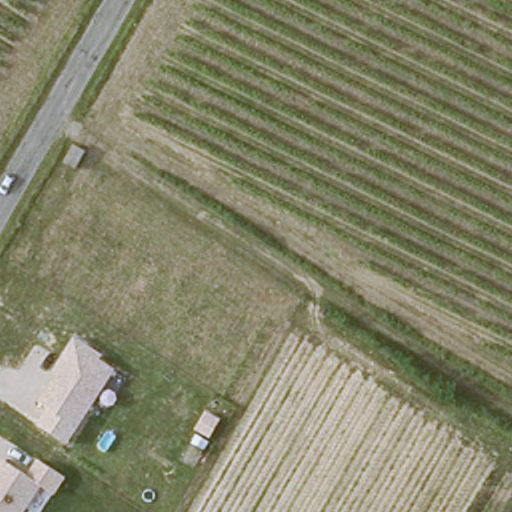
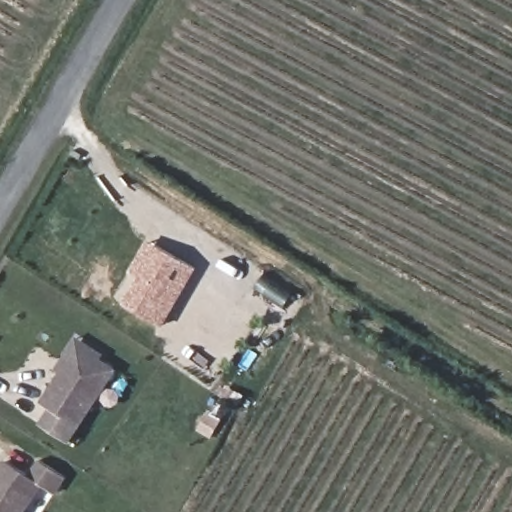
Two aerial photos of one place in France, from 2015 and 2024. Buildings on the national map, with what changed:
new [(142,276),(133,271),(152,240),(160,245),(142,276)]
new [(162,325),(126,303),(160,245),(196,266),(162,325)]
unchanged [(46,430),(58,412),(44,403),(80,347),(117,371),(70,444),(46,430)]
unchanged [(31,476),(40,459),(70,478),(58,497),(44,488),(28,512),(0,512),(0,470),(6,460),(31,476)]

